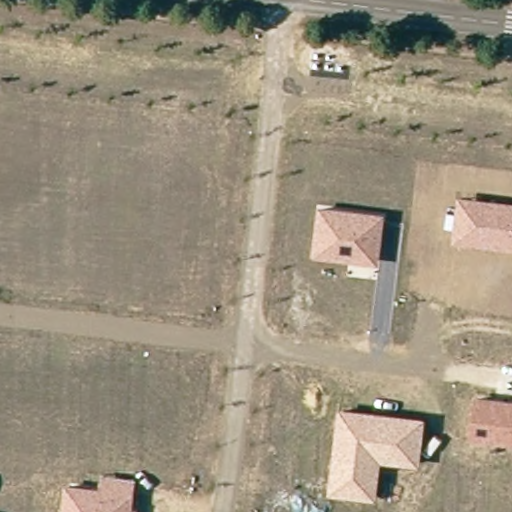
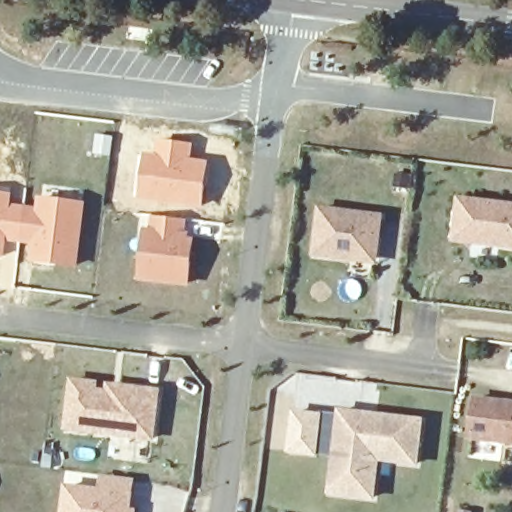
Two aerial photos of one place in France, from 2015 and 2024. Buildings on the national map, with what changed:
new [(146,154),(151,154),(154,140),(194,143),(193,158),(209,161),(200,209),(140,199),(146,154)]
new [(20,239),(19,243),(7,242),(5,259),(0,258),(0,192),(12,193),(11,206),(24,208),(20,239)]
unchanged [(512,203),(512,251),(452,243),(457,197),(512,203)]
new [(35,240),(20,239),(24,208),(39,209),(40,198),(82,203),(75,264),(55,262),(32,259),(34,255),(35,240)]
unchanged [(378,267),(313,258),(319,206),(385,215),(378,267)]
new [(150,231),(152,215),(187,219),(185,235),(185,239),(190,240),(189,261),(186,282),(139,277),(144,230),(150,231)]
new [(74,377),(97,380),(97,388),(110,390),(110,382),(120,383),(160,388),(154,436),(68,425),(73,385),(74,377)]
unchanged [(473,396),(512,400),(512,445),(468,441),(473,396)]
unchanged [(376,501),(327,496),(338,408),(426,418),(420,467),(381,463),(376,501)]
new [(295,411),(320,414),(315,451),(291,448),(295,411)]
unchanged [(99,476),(136,481),(134,508),(139,509),(138,512),(64,512),(67,485),(99,488),(99,476)]

